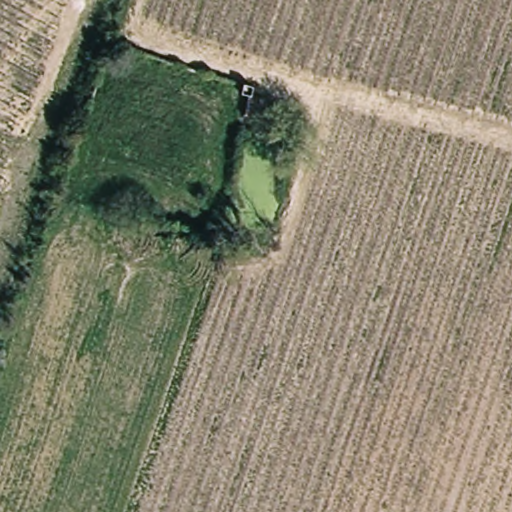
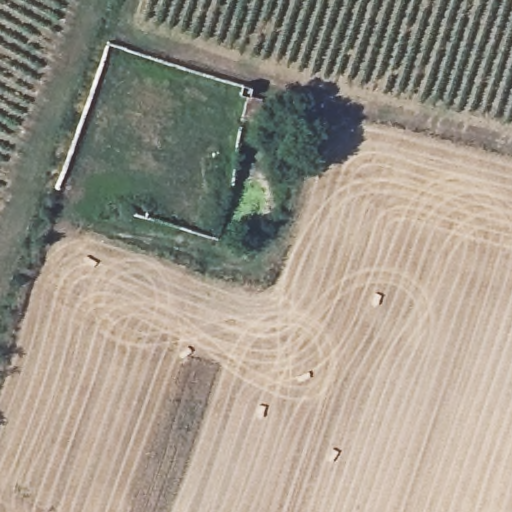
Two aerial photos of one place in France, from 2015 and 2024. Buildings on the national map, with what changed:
unchanged [(248,99),(263,105),(257,122),(245,116),(248,99)]

